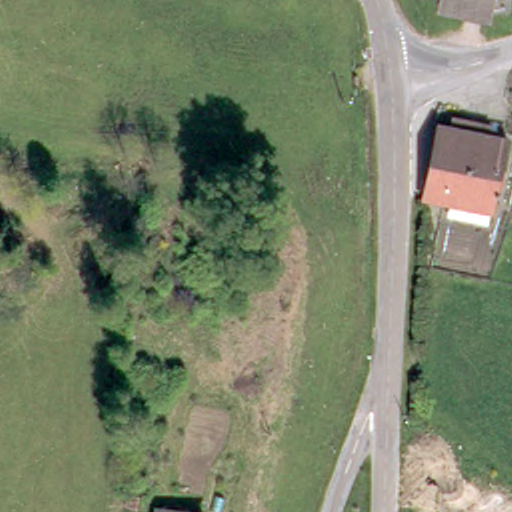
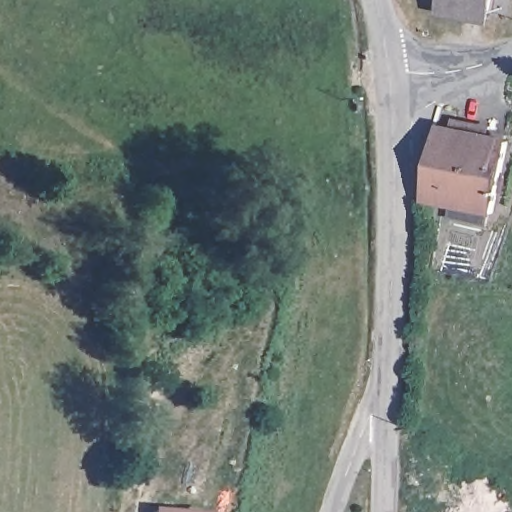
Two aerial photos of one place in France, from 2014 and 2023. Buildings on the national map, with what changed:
unchanged [(438,0),(492,0),(489,22),(435,11),(438,0)]
unchanged [(445,217),(447,205),(419,198),(420,182),(431,126),(445,129),(447,126),(450,115),(482,122),(480,134),(502,139),(487,213),(483,212),(480,224),(445,217)]
unchanged [(206,512),(159,512),(160,508),(207,512),(206,512)]

